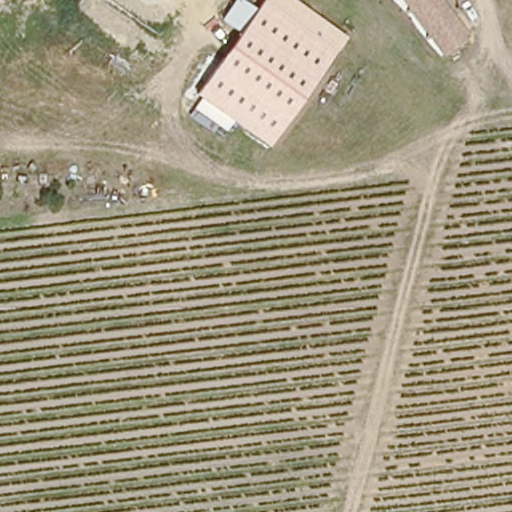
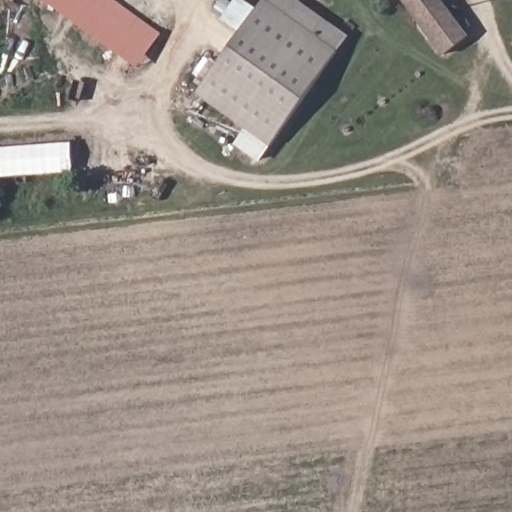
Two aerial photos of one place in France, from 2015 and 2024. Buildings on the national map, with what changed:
new [(136,68),(38,0),(113,0),(161,33),(136,68)]
unchanged [(263,0),(294,0),(347,38),(268,148),(233,121),(225,132),(217,125),(212,133),(188,115),(194,109),(200,99),(195,95),(240,34),(221,20),(234,0),(243,0),(257,9),(263,0)]
unchanged [(447,59),(404,0),(441,0),(473,43),(447,59)]

